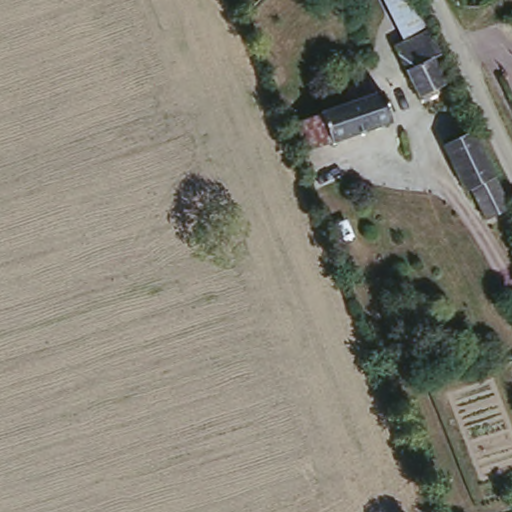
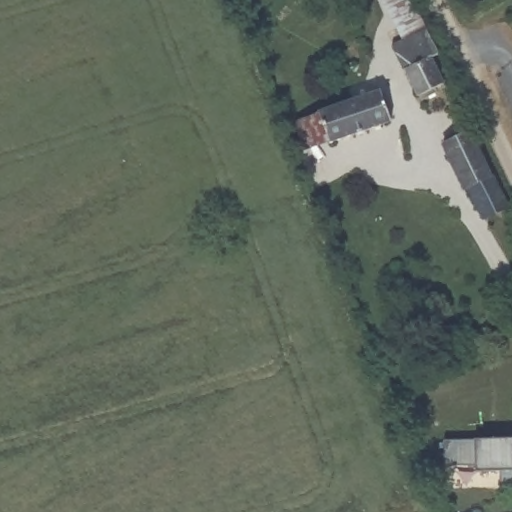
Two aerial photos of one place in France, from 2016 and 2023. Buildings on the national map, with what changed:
unchanged [(388,0),(415,0),(427,29),(405,38),(388,0)]
unchanged [(438,55),(432,58),(444,79),(413,91),(395,43),(405,38),(427,29),(438,55)]
unchanged [(322,102),(380,83),(393,117),(334,136),(322,102)]
unchanged [(322,102),(334,136),(306,145),(295,112),(322,102)]
unchanged [(472,121),(490,163),(466,174),(457,178),(441,134),(472,121)]
unchanged [(508,204),(482,215),(466,174),(490,163),(508,204)]
new [(512,440),(512,485),(502,485),(501,470),(478,471),(477,464),(445,467),(445,441),(478,441),(512,440)]

